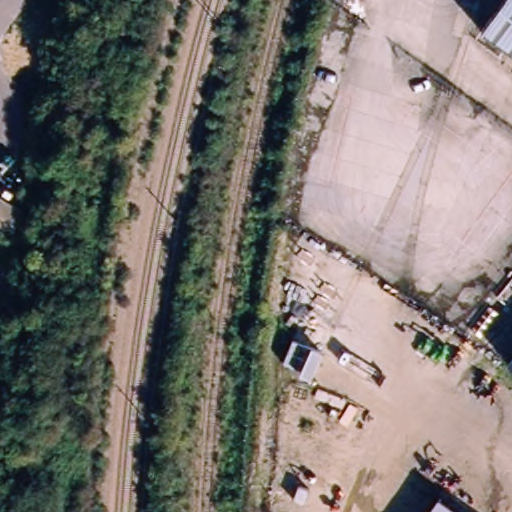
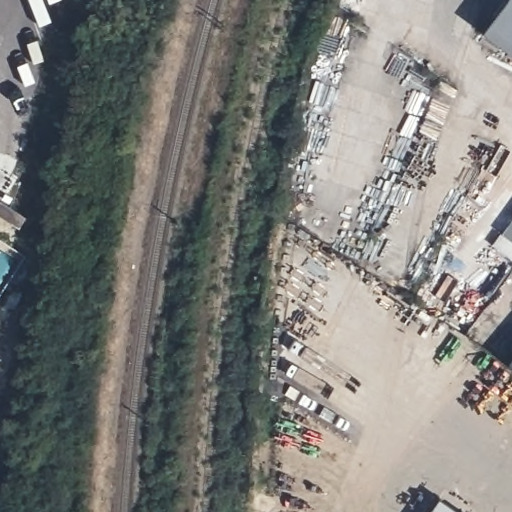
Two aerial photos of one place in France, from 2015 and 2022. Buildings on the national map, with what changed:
unchanged [(502,0),(512,0),(512,57),(478,32),(502,0)]
new [(512,217),(512,260),(491,245),(500,232),(512,217)]
unchanged [(512,373),(505,368),(512,359),(512,373)]
unchanged [(464,512),(426,512),(437,496),(464,512)]

